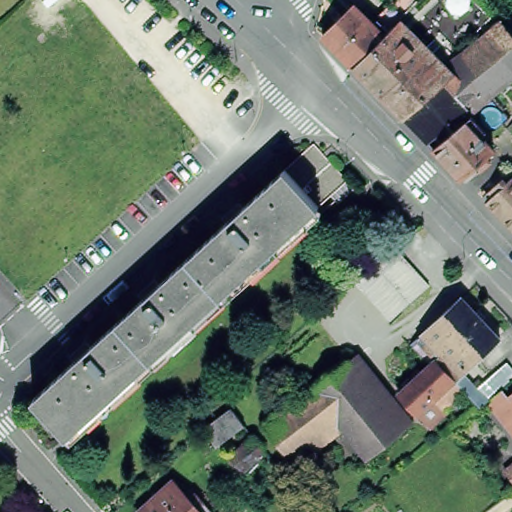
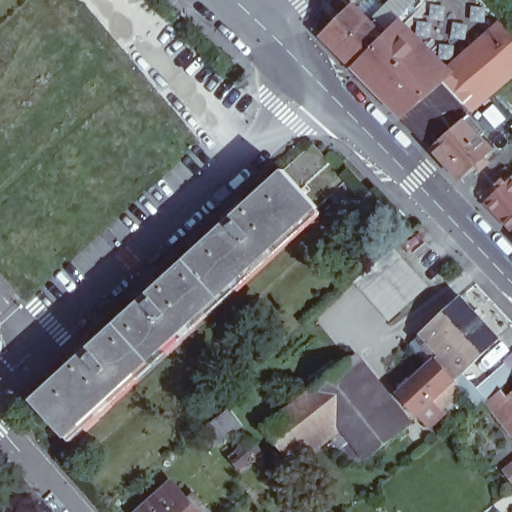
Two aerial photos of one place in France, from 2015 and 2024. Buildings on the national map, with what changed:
unchanged [(354,5),(382,26),(410,0),(414,0),(420,6),(429,0),(474,0),(490,14),(480,28),(490,28),(512,54),(512,82),(476,115),(505,154),(463,192),(325,45),(354,5)]
unchanged [(224,296),(190,259),(221,230),(230,222),(227,217),(243,202),(247,206),(288,169),(322,207),(224,296)]
unchanged [(482,206),(500,188),(505,192),(511,186),(512,188),(512,238),(485,211),(482,206)]
unchanged [(400,292),(392,283),(383,274),(375,264),(393,247),(402,257),(410,266),(418,276),(427,285),(408,302),(400,292)]
unchanged [(155,360),(120,322),(137,307),(147,299),(142,294),(159,279),(163,283),(190,259),(224,296),(155,360)]
unchanged [(388,320),(380,310),(371,301),(363,291),(354,282),(373,265),(382,275),(390,284),(398,293),(407,303),(388,320)]
unchanged [(464,374),(425,332),(465,296),(503,338),(464,374)]
unchanged [(71,436),(48,411),(37,398),(77,362),(77,361),(73,357),(90,342),(95,346),(120,322),(155,360),(71,436)]
unchanged [(411,437),(378,463),(372,454),(342,415),(317,384),(315,383),(353,354),(408,424),(407,426),(412,432),(411,437)]
unchanged [(453,394),(447,389),(421,414),(402,393),(432,365),(435,362),(440,359),(457,378),(458,379),(463,384),(453,394)]
unchanged [(465,386),(472,379),(491,399),(483,405),(465,386)]
unchanged [(342,415),(294,453),(268,419),(317,384),(342,415)]
unchanged [(511,397),(512,396),(512,398),(511,397)]
unchanged [(230,411),(243,429),(215,451),(202,433),(230,411)]
unchanged [(253,435),(267,455),(243,476),(230,457),(253,435)]
unchanged [(512,465),(512,482),(503,471),(512,465)]
unchanged [(181,505),(188,498),(199,510),(197,512),(139,512),(165,488),(181,505)]
unchanged [(309,512),(300,512),(306,507),(309,512)]

